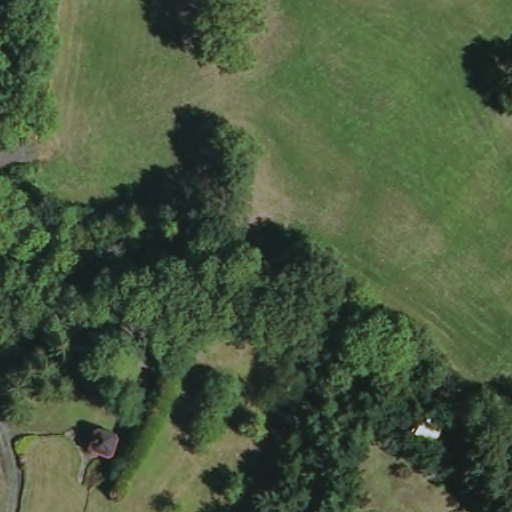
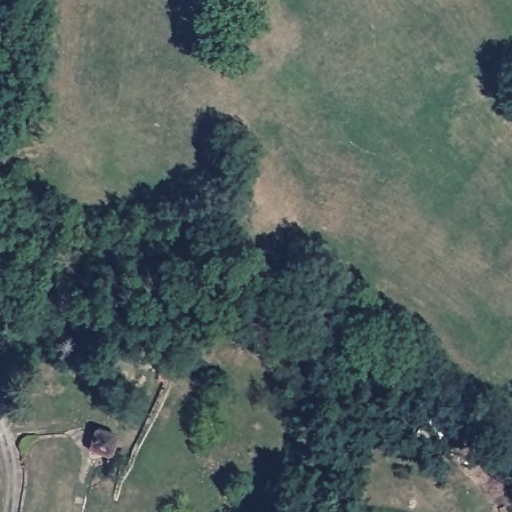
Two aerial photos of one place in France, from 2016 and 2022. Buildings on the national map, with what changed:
unchanged [(158,349),(138,342),(143,325),(163,332),(175,336),(168,353),(158,349)]
unchanged [(124,445),(120,459),(112,463),(100,458),(95,450),(100,437),(109,434),(121,438),(124,445)]

